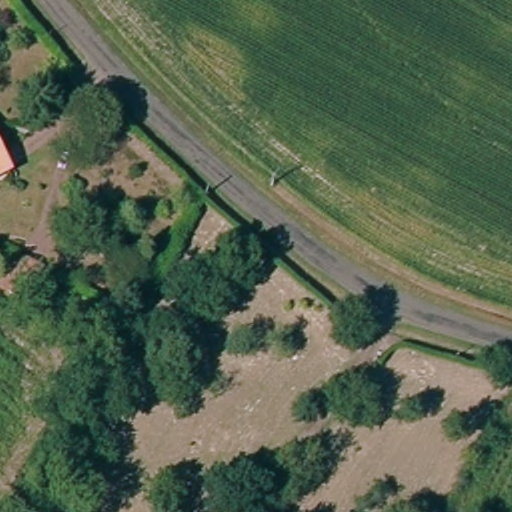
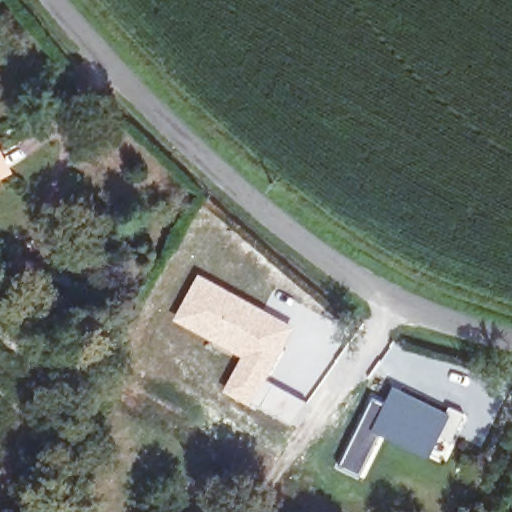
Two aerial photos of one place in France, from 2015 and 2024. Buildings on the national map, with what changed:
unchanged [(1,170),(0,170),(0,169),(1,170)]
unchanged [(34,296),(20,289),(11,285),(26,254),(36,259),(51,266),(34,296)]
new [(198,273),(294,326),(266,379),(250,405),(222,391),(240,356),(173,319),(198,273)]
new [(266,379),(306,401),(291,425),(250,405),(266,379)]
new [(372,397),(383,402),(392,385),(451,413),(448,428),(430,459),(383,436),(361,478),(338,466),(372,397)]

